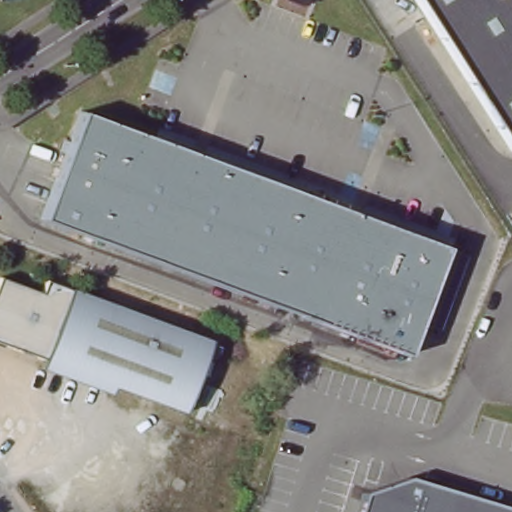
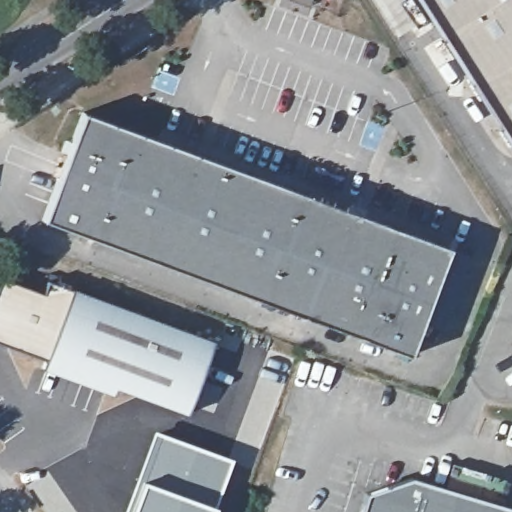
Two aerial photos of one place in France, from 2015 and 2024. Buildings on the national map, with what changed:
unchanged [(512,0),(512,142),(421,0),(512,0)]
unchanged [(44,229),(82,121),(449,249),(411,358),(44,229)]
unchanged [(45,278),(212,337),(186,408),(0,341),(0,276),(40,290),(45,278)]
new [(152,428),(233,458),(215,507),(135,477),(152,428)]
new [(135,477),(215,507),(213,512),(121,512),(135,477)]
unchanged [(367,494),(412,479),(512,510),(512,512),(362,512),(367,494)]

